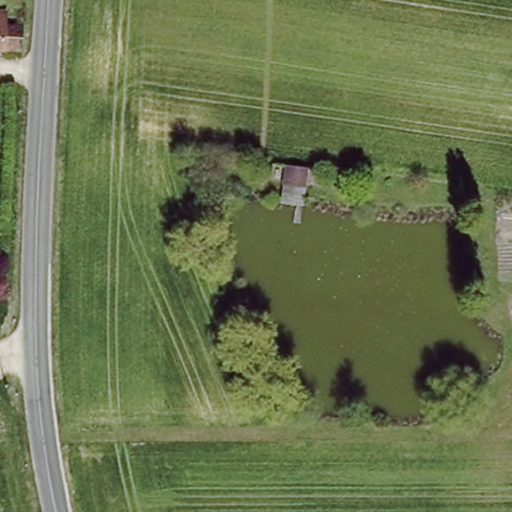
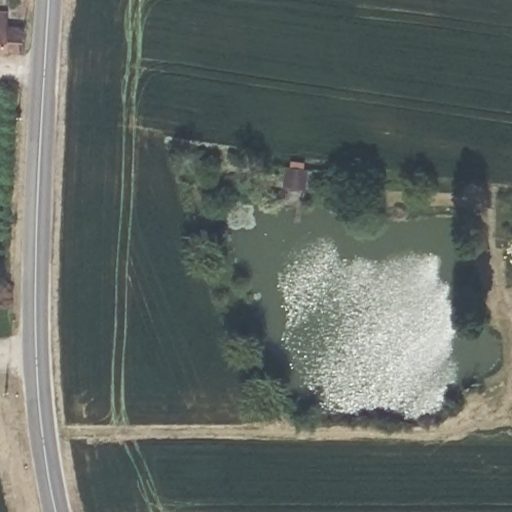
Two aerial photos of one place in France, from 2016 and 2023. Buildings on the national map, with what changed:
unchanged [(20,33),(19,58),(0,57),(0,32),(20,33)]
unchanged [(273,195),(277,168),(301,168),(298,196),(273,195)]

